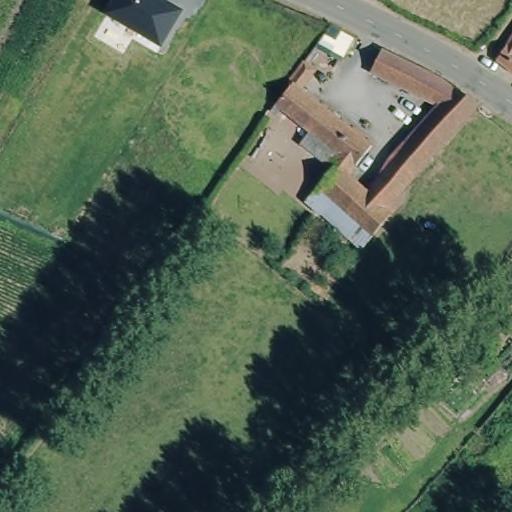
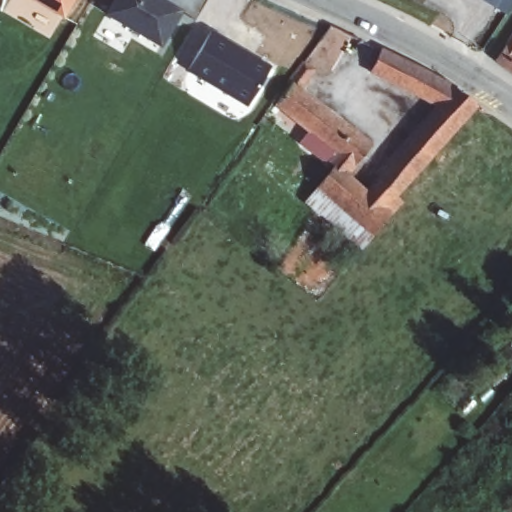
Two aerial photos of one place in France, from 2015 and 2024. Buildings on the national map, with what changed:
new [(13,0),(70,0),(55,25),(13,0)]
unchanged [(92,0),(170,0),(182,8),(162,44),(90,4),(92,0)]
unchanged [(476,0),(504,0),(498,12),(476,0)]
unchanged [(494,55),(512,25),(512,68),(494,55)]
new [(188,70),(211,32),(270,67),(247,107),(188,70)]
unchanged [(375,244),(362,232),(354,243),(311,207),(319,196),(306,186),(312,179),(327,162),(325,161),(324,159),(327,155),(305,137),(308,133),(268,103),(267,102),(292,69),(304,77),(295,90),(362,142),(339,169),(358,186),(440,97),(362,61),(370,47),(392,57),(445,82),(454,87),(472,102),(461,115),(455,121),(444,135),(430,149),(430,150),(417,164),(400,183),(378,207),(379,207),(382,211),(395,222),(375,244)]

